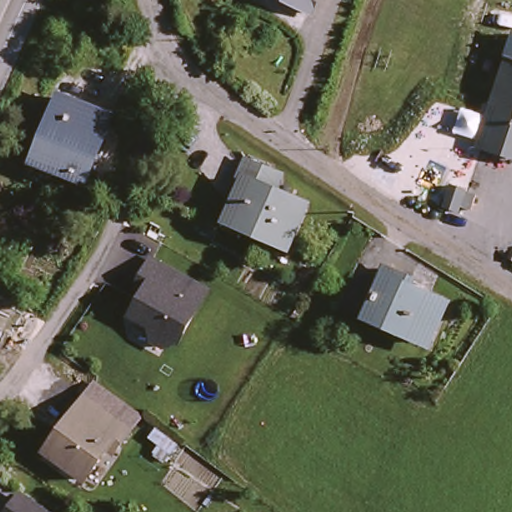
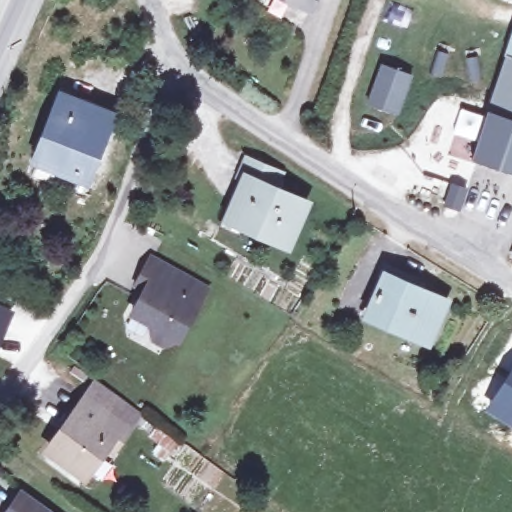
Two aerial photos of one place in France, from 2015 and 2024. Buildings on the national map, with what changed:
unchanged [(314,6),(303,0),(317,0),(314,6)]
unchanged [(494,142),(482,138),(484,130),(512,45),(512,148),(494,142)]
new [(399,115),(368,104),(382,64),(413,75),(399,115)]
unchanged [(113,111),(85,177),(38,158),(64,91),(113,111)]
unchanged [(246,181),(239,179),(247,159),(283,174),(276,191),(306,205),(289,244),(229,219),(246,181)]
unchanged [(471,180),(464,201),(449,196),(456,175),(471,180)]
unchanged [(193,284),(184,299),(198,305),(178,342),(164,348),(153,342),(150,327),(132,317),(146,292),(137,287),(151,261),(193,284)]
unchanged [(386,278),(383,276),(387,268),(415,281),(412,289),(446,304),(430,342),(370,315),(386,278)]
new [(2,334),(0,338),(0,312),(9,317),(2,334)]
new [(512,365),(512,427),(484,410),(512,365)]
unchanged [(67,427),(71,430),(81,417),(74,412),(97,379),(141,409),(115,446),(110,442),(88,474),(52,449),(67,427)]
unchanged [(10,512),(21,496),(44,512),(10,512)]

